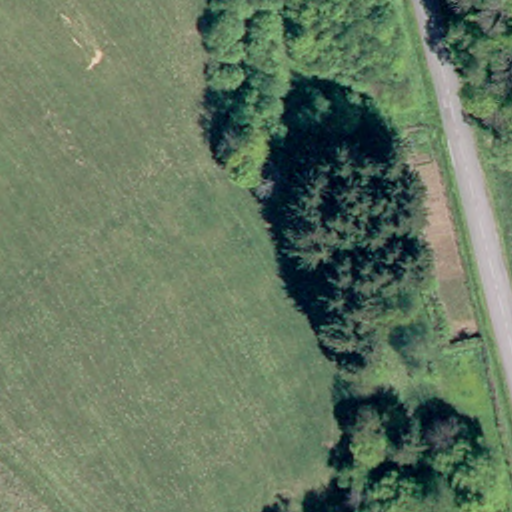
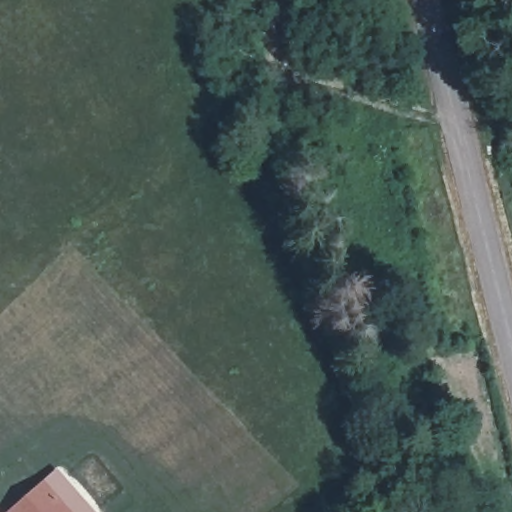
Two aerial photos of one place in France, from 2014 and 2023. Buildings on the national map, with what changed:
new [(57,469),(94,512),(6,512),(57,469)]

